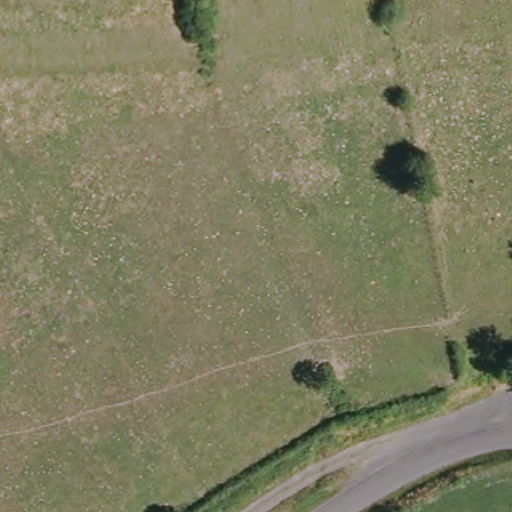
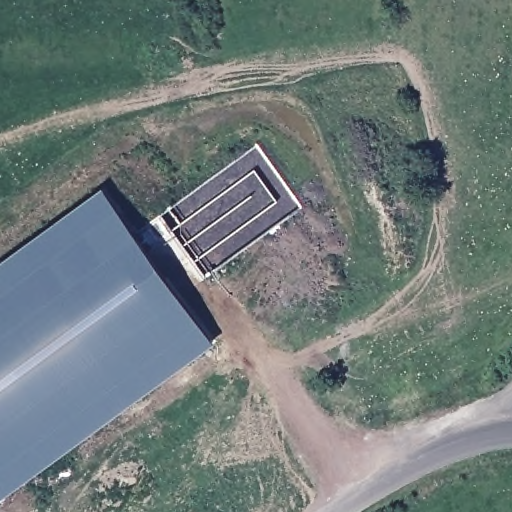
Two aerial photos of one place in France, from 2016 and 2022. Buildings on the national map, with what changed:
new [(0,507),(0,271),(106,197),(219,348),(0,507)]

